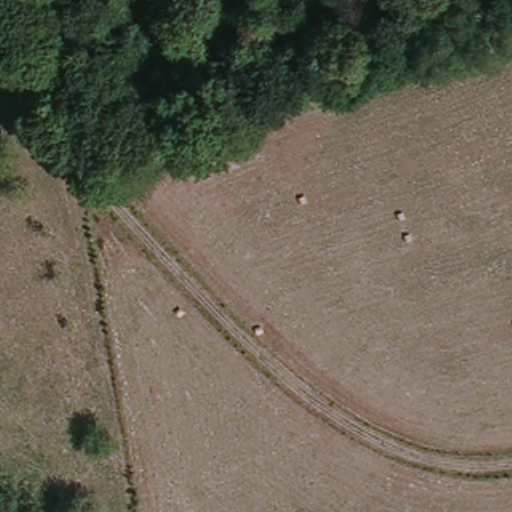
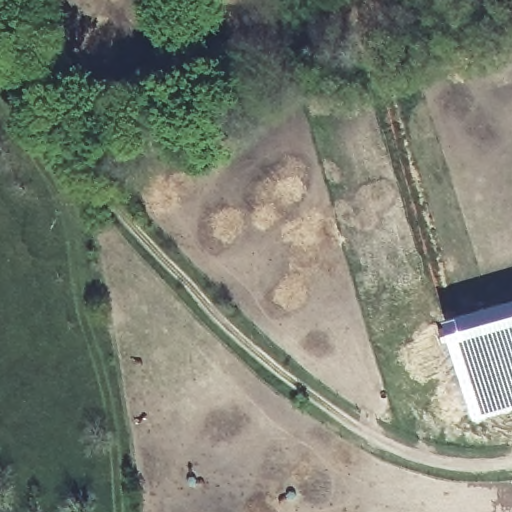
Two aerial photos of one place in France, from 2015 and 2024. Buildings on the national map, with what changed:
new [(512,302),(512,409),(472,422),(444,321),(512,302)]

